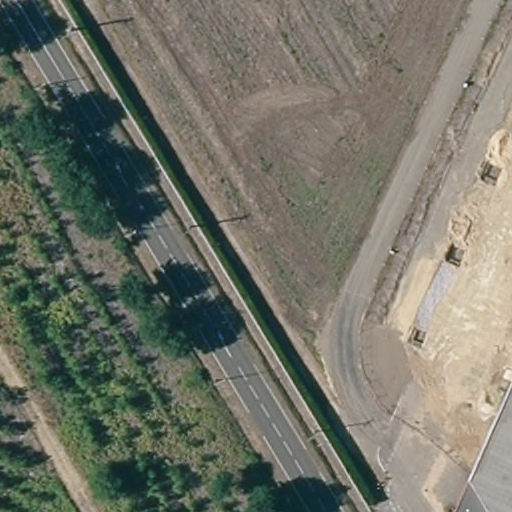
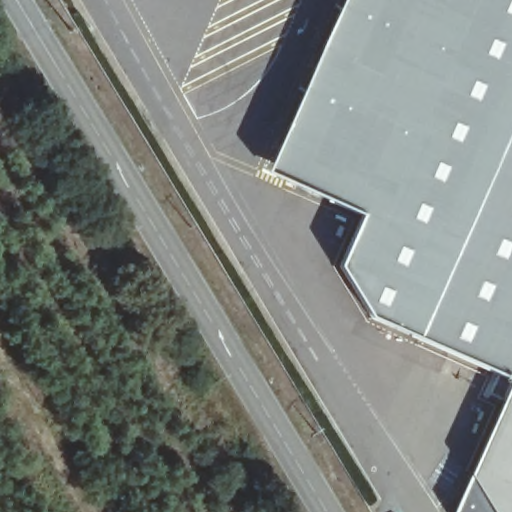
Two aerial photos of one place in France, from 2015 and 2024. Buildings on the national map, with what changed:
new [(342,264),(364,215),(267,172),(344,0),(512,0),(512,121),(433,300),(419,333),(373,314),(342,264)]
new [(506,373),(419,333),(512,122),(512,362),(506,373)]
unchanged [(468,455),(512,361),(512,512),(503,512),(468,455)]
unchanged [(468,455),(503,512),(442,512),(468,455)]

